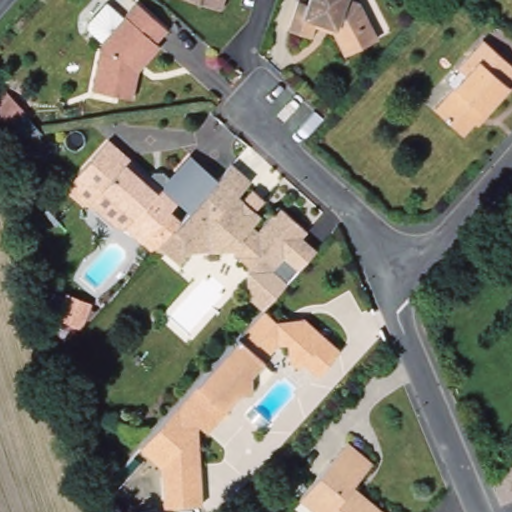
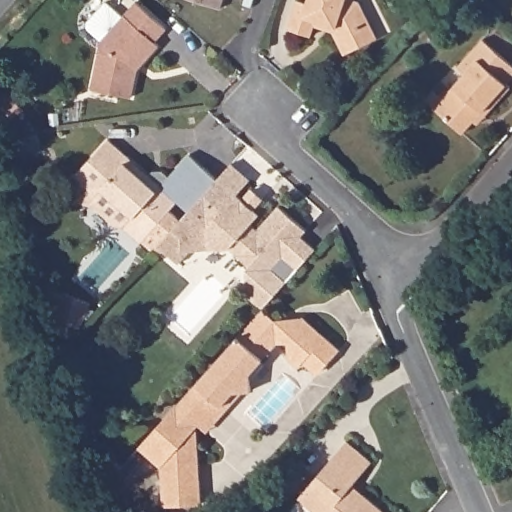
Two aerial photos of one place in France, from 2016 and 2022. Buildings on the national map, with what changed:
unchanged [(214,0),(223,0),(222,2),(214,0)]
unchanged [(311,10),(314,0),(351,0),(350,5),(363,9),(373,29),(362,34),(371,50),(348,61),(337,39),(338,34),(319,27),(318,32),(314,44),(292,36),(301,7),(311,10)]
unchanged [(104,45),(139,5),(169,32),(158,45),(161,49),(140,73),(134,100),(93,92),(104,45)]
unchanged [(468,77),(460,71),(485,42),(512,66),(512,84),(509,87),(512,90),(512,91),(489,118),(485,115),(476,124),(465,137),(447,121),(437,112),(445,103),(468,77)]
unchanged [(6,124),(0,118),(0,82),(26,106),(6,124)]
unchanged [(261,308),(247,293),(248,267),(250,265),(229,248),(189,252),(181,263),(164,250),(159,254),(153,249),(68,186),(108,140),(153,178),(161,169),(170,175),(192,152),(219,179),(233,165),(251,180),(238,194),(243,198),(252,187),(265,199),(256,210),(261,215),(253,225),(258,231),(280,207),(306,230),(301,237),(316,249),(261,308)]
unchanged [(64,287),(95,298),(85,325),(57,314),(64,287)]
unchanged [(211,440),(203,432),(200,435),(205,511),(195,512),(167,512),(165,474),(143,455),(236,350),(266,316),(279,327),(285,327),(306,326),(308,322),(345,355),(326,376),(312,363),(301,375),(292,366),(291,350),(280,350),(253,381),(254,398),(247,398),(229,418),(211,440)]
unchanged [(350,445),(374,465),(355,488),(383,512),(314,512),(302,501),(350,445)]

